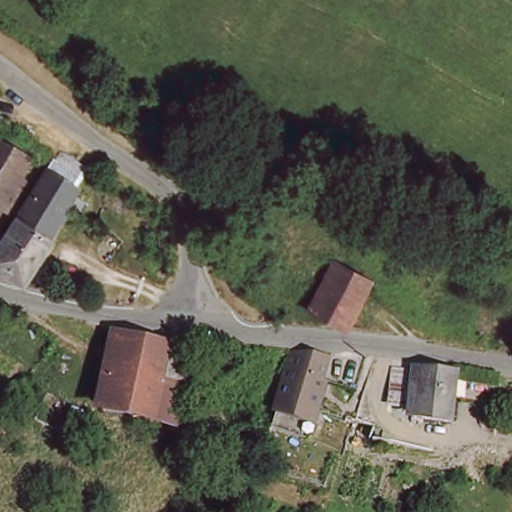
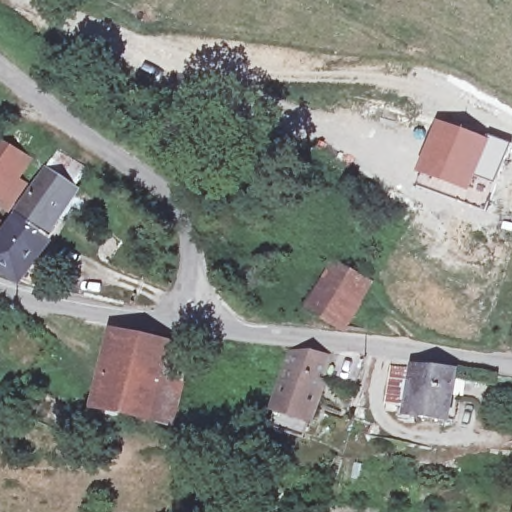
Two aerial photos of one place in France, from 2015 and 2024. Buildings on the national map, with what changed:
new [(496,185),(477,179),(469,195),(419,179),(420,176),(418,175),(438,120),(491,137),(511,143),(496,185)]
unchanged [(26,159),(0,201),(0,140),(1,139),(26,159)]
unchanged [(0,283),(0,237),(48,165),(76,185),(10,290),(0,283)]
unchanged [(309,318),(324,288),(336,268),(369,285),(359,306),(344,336),(309,318)]
unchanged [(101,410),(118,339),(169,350),(191,354),(183,384),(173,426),(101,410)]
unchanged [(292,358),(334,361),(310,428),(276,418),(292,358)]
unchanged [(470,378),(463,422),(426,417),(427,413),(404,410),(410,375),(428,377),(429,372),(470,378)]

